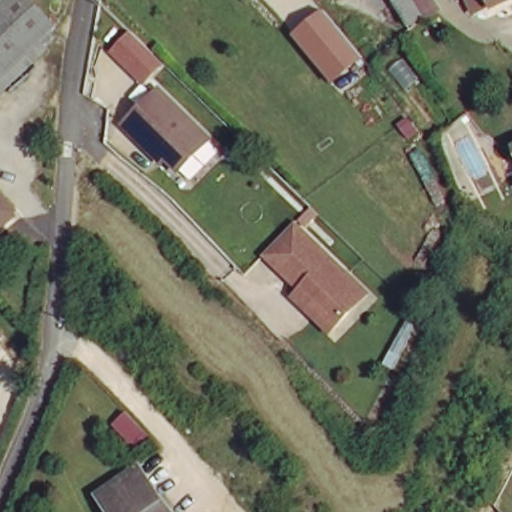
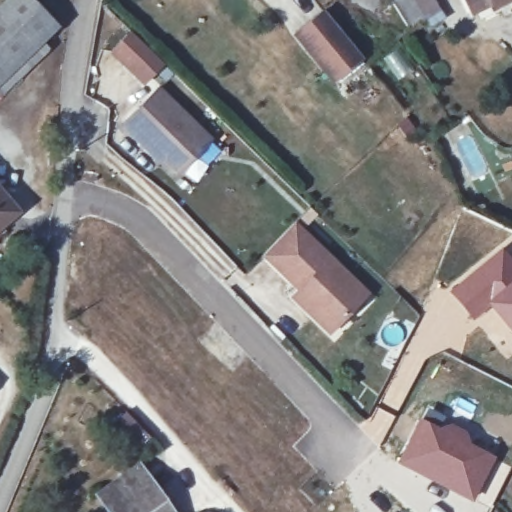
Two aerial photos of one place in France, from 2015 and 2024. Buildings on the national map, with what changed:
unchanged [(15,0),(31,0),(60,31),(0,89),(0,14),(15,0)]
unchanged [(409,0),(416,0),(428,19),(422,23),(412,30),(398,7),(409,0)]
unchanged [(495,13),(488,0),(512,0),(512,4),(495,13)]
unchanged [(332,85),(292,36),(323,10),(362,59),(332,85)]
unchanged [(128,30),(163,64),(143,84),(107,52),(128,30)]
unchanged [(139,139),(126,127),(161,91),(213,142),(182,174),(170,162),(166,166),(139,139)]
unchanged [(19,205),(0,222),(0,184),(19,205)]
unchanged [(351,311),(333,330),(313,310),(320,302),(268,251),(290,228),(298,221),(365,287),(370,292),(351,311)]
new [(512,259),(512,339),(489,309),(474,322),(448,291),(503,248),(512,259)]
new [(410,435),(428,406),(447,416),(450,422),(466,430),(468,434),(470,442),(496,456),(473,503),(396,463),(410,435)]
unchanged [(107,512),(106,511),(116,503),(106,489),(139,469),(172,512),(107,512)]

